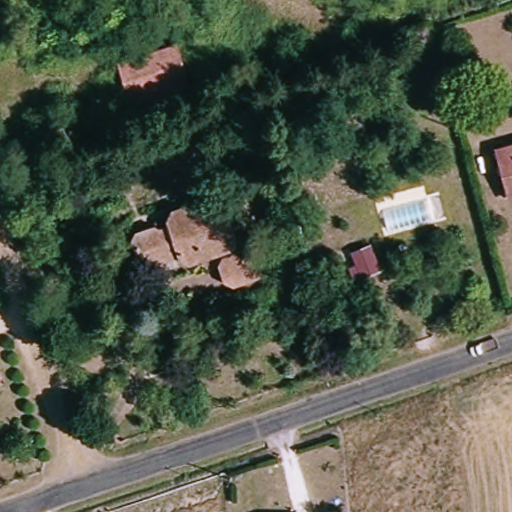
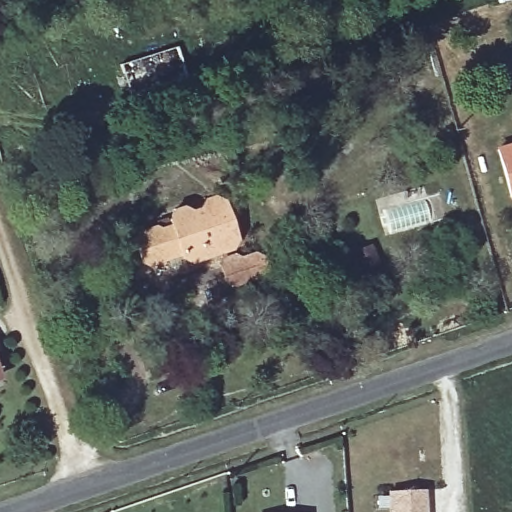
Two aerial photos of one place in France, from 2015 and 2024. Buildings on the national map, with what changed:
unchanged [(178,48),(188,80),(131,98),(122,65),(178,48)]
unchanged [(494,145),(512,140),(512,193),(507,194),(494,145)]
unchanged [(220,217),(221,221),(231,227),(229,247),(218,251),(211,248),(201,252),(197,258),(190,261),(176,249),(169,251),(165,258),(157,261),(145,262),(139,259),(132,240),(138,231),(156,225),(157,230),(169,225),(167,219),(171,209),(183,206),(188,209),(195,207),(201,198),(216,195),(220,201),(222,208),(220,217)]
unchanged [(232,284),(225,281),(221,281),(217,261),(233,254),(235,260),(257,253),(263,267),(255,277),(232,284)]
unchanged [(0,382),(0,377),(1,381),(0,382)]
new [(421,492),(423,512),(389,512),(388,494),(421,492)]

